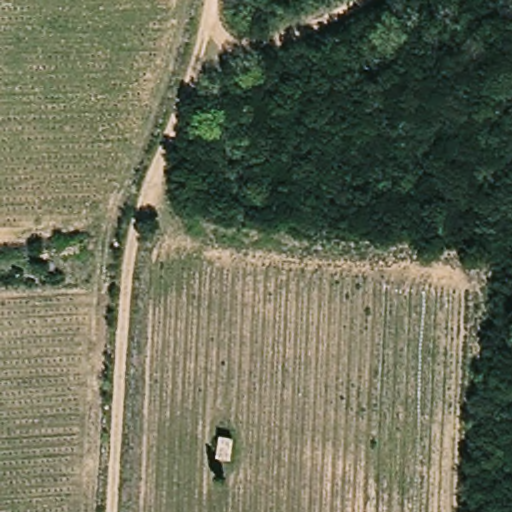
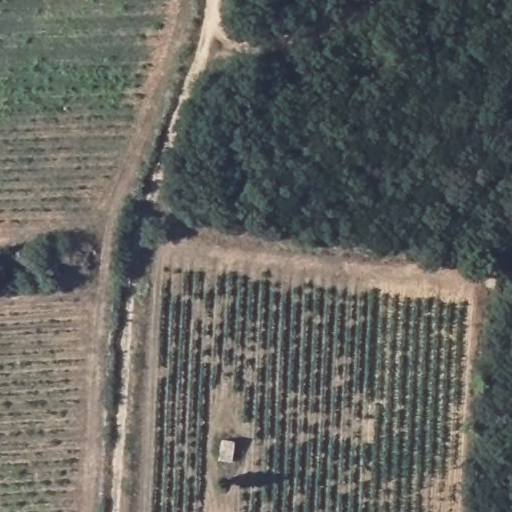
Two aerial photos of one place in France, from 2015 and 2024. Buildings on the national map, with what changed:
unchanged [(221,460),(224,437),(240,437),(238,465),(221,460)]

